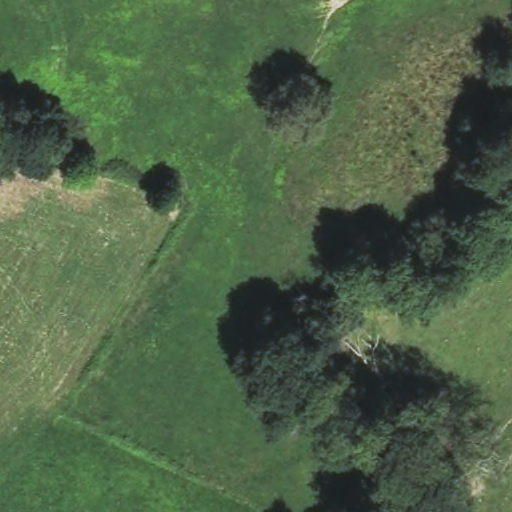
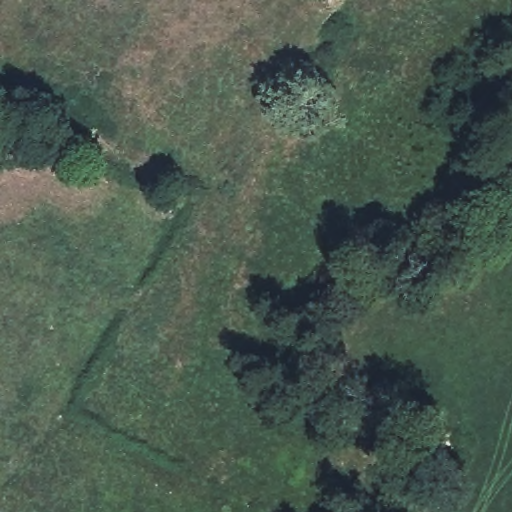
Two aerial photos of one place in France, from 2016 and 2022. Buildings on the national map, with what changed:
unchanged [(65,140),(34,129),(0,118),(0,91),(73,116),(65,140)]

